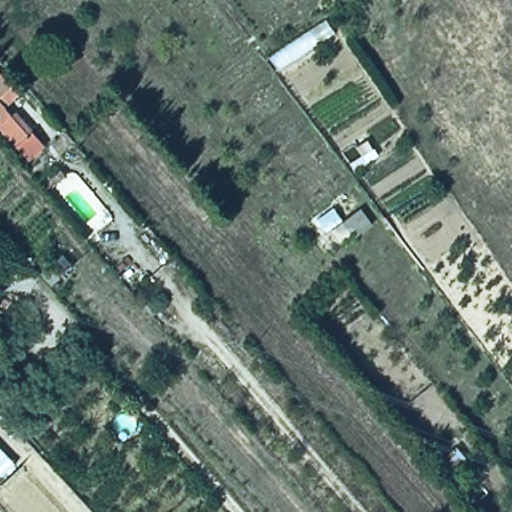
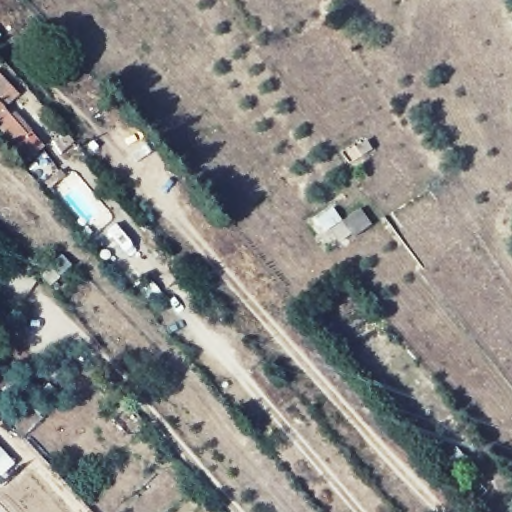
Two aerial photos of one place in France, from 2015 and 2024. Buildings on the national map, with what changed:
unchanged [(12,89),(0,98),(0,78),(12,89)]
unchanged [(0,137),(0,104),(19,134),(24,129),(40,150),(21,161),(0,137)]
unchanged [(336,250),(312,224),(332,212),(339,223),(357,209),(372,233),(336,250)]

